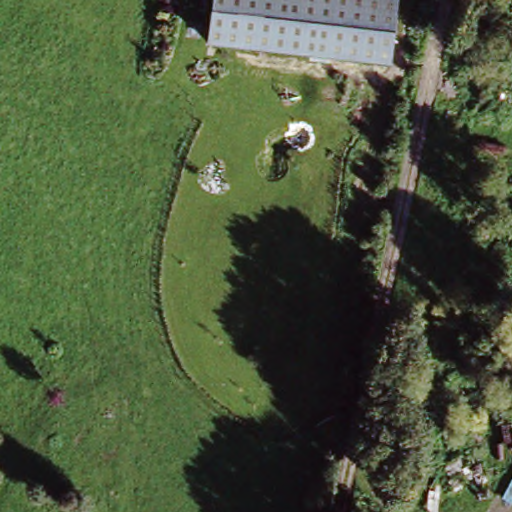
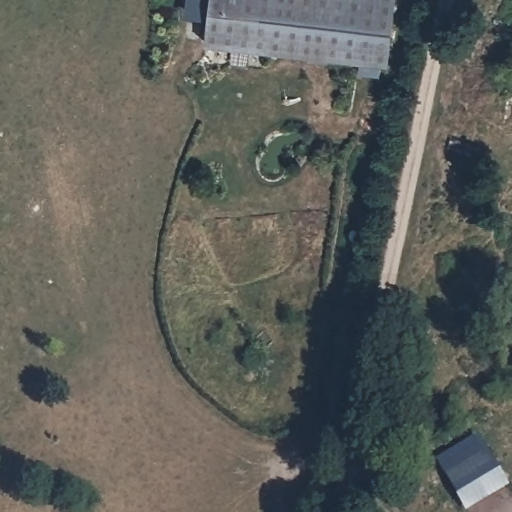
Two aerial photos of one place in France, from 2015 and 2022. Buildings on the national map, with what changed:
unchanged [(211,54),(216,0),(397,0),(393,74),(211,54)]
new [(510,483),(468,511),(448,476),(488,448),(510,483)]

